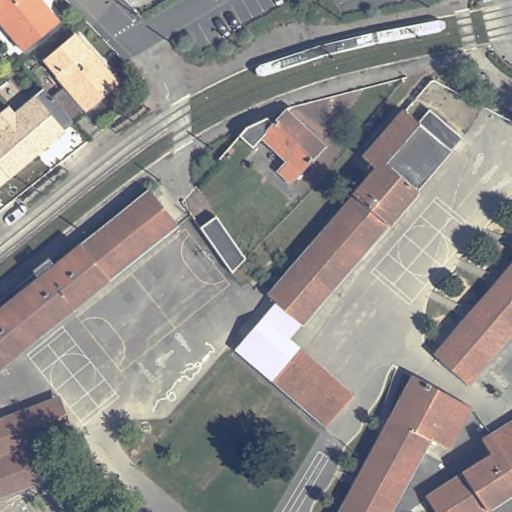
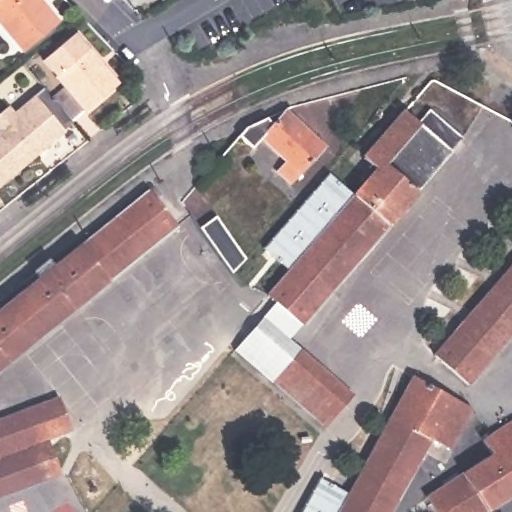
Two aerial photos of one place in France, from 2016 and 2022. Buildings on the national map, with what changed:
unchanged [(0,5),(0,0),(5,0),(0,5)]
unchanged [(62,28),(28,56),(0,21),(0,5),(5,0),(40,0),(62,28)]
unchanged [(102,99),(73,124),(50,97),(65,85),(47,65),(60,54),(56,50),(74,34),(116,79),(120,84),(102,99)]
unchanged [(6,128),(3,123),(32,97),(40,106),(50,97),(73,124),(7,179),(0,185),(0,133),(6,128)]
unchanged [(287,111),(327,145),(294,183),(280,172),(289,162),(263,139),(254,150),(240,137),(247,129),(269,119),(275,125),(287,111)]
unchanged [(273,301),(383,177),(369,165),(410,117),(424,130),(436,116),(469,145),(457,159),(423,198),(342,291),(295,345),(269,376),(241,354),(281,308),(273,301)]
new [(332,173),(355,193),(291,266),(268,246),(332,173)]
unchanged [(80,315),(0,379),(0,311),(54,267),(60,274),(156,196),(176,222),(185,231),(80,315)]
unchanged [(218,217),(247,259),(234,274),(201,229),(218,217)]
unchanged [(440,357),(512,274),(512,341),(473,386),(440,357)]
unchanged [(359,401),(332,431),(269,376),(295,345),(359,401)]
unchanged [(478,414),(455,455),(436,446),(400,512),(348,512),(421,381),(478,414)]
unchanged [(0,447),(0,427),(63,404),(75,438),(52,446),(6,463),(0,447)]
unchanged [(483,446),(512,428),(512,502),(496,512),(432,512),(426,504),(493,461),(483,446)]
unchanged [(65,482),(0,505),(0,465),(6,463),(52,446),(65,482)]
new [(347,495),(338,512),(303,512),(320,480),(347,495)]

